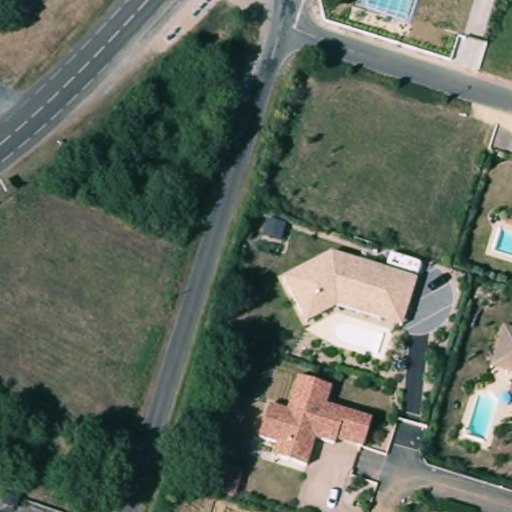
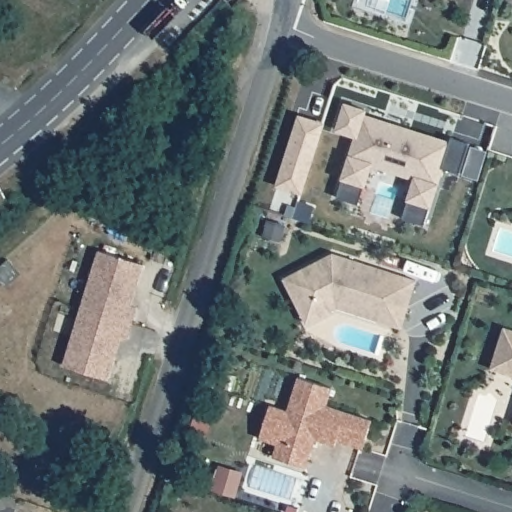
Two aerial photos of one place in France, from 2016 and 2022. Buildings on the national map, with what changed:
new [(402,218),(408,199),(415,178),(371,164),(365,185),(358,204),(336,197),(342,178),(356,136),(337,130),(345,104),(365,110),(363,115),(385,122),(396,125),(450,142),(451,137),(470,143),(460,173),(442,168),(430,206),(425,225),(402,218)]
new [(106,378),(61,364),(96,249),(142,263),(135,284),(129,305),(135,306),(125,338),(120,336),(113,356),(106,378)]
unchanged [(281,278),(331,253),(416,280),(401,328),(337,306),(305,323),(281,278)]
unchanged [(512,372),(490,365),(502,326),(512,328),(512,372)]
unchanged [(335,383),(329,404),(372,417),(364,446),(340,438),(338,442),(316,435),(307,465),(275,454),(279,442),(261,435),(270,400),(290,407),(301,371),(335,383)]

